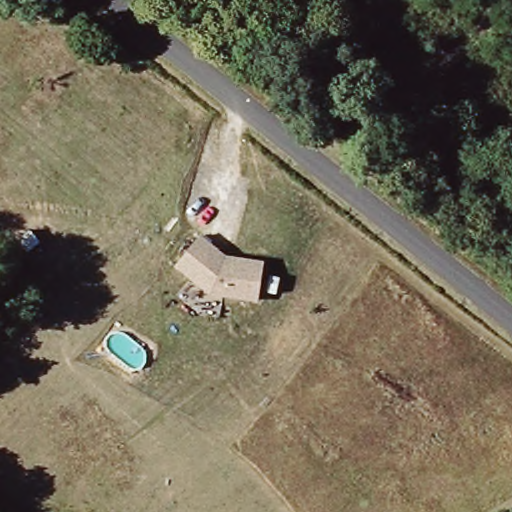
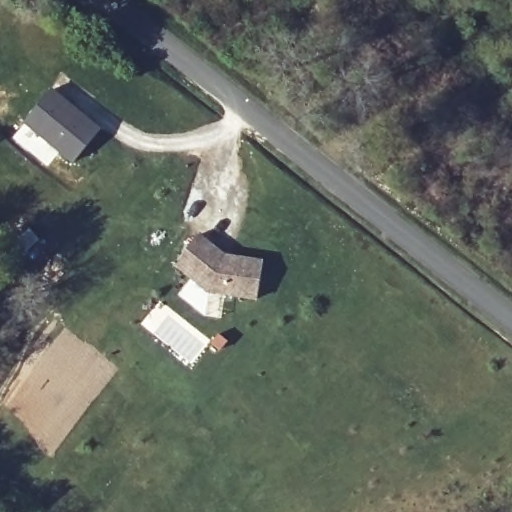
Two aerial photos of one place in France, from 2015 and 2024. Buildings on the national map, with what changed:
new [(26,125),(53,90),(101,130),(74,164),(26,125)]
unchanged [(224,256),(262,261),(257,303),(207,297),(173,267),(199,235),(224,256)]

